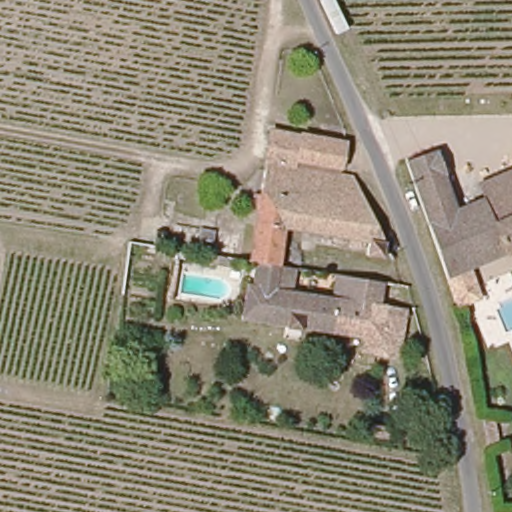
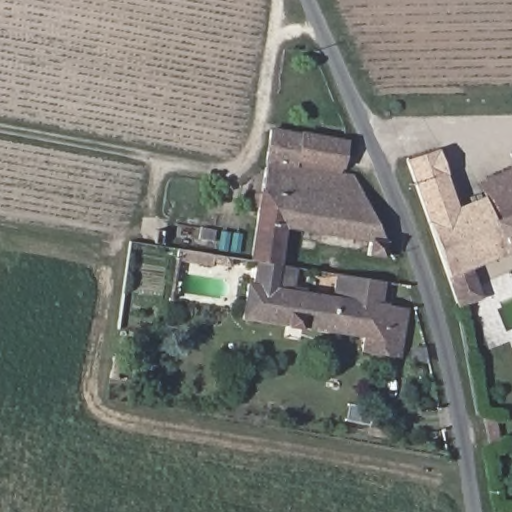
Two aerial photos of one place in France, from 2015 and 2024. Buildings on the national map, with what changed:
unchanged [(270,131),(345,143),(341,170),(354,175),(384,234),(383,245),(382,258),(362,256),(364,239),(282,226),(277,264),(254,260),(248,259),(270,131)]
unchanged [(446,281),(424,215),(402,169),(434,155),(458,211),(484,201),(478,182),(487,179),(511,170),(512,172),(512,218),(492,224),(503,255),(467,271),(479,300),(455,310),(446,281)]
unchanged [(512,172),(511,170),(512,170),(512,172)]
unchanged [(492,224),(512,218),(512,252),(503,255),(492,224)]
unchanged [(414,310),(410,344),(240,319),(248,259),(254,260),(277,264),(273,286),(329,295),(414,310)]
unchanged [(333,273),(329,295),(273,286),(277,264),(333,273)]

